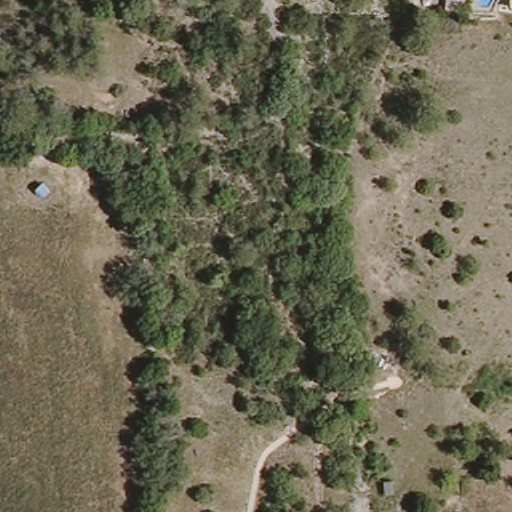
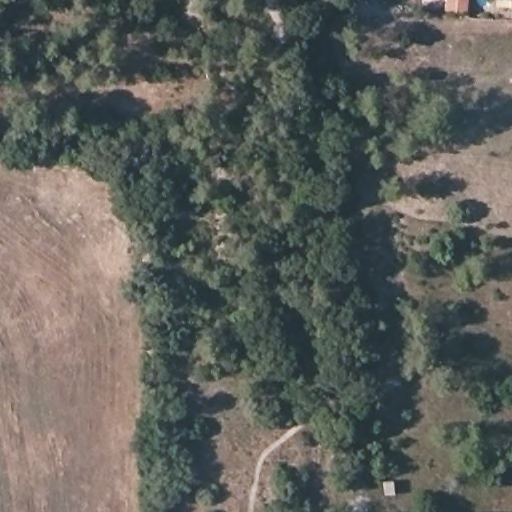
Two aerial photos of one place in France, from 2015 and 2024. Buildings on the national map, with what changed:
unchanged [(466,6),(446,4),(446,0),(467,0),(466,6)]

